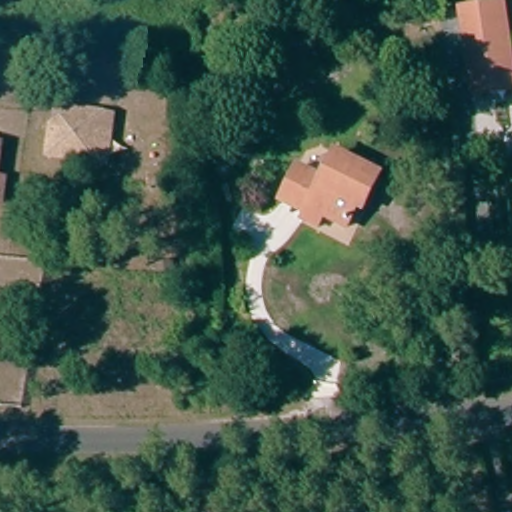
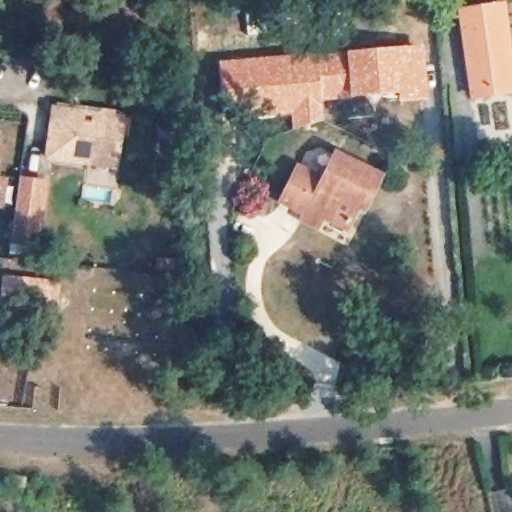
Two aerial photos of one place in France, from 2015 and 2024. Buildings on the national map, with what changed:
demolished [(464,0),(504,0),(509,65),(485,67),(485,77),(470,78),(464,0)]
new [(467,94),(461,8),(500,5),(506,82),(506,92),(482,94),(467,94)]
new [(422,44),(429,99),(397,104),(395,95),(349,99),(343,50),(422,44)]
new [(305,52),(343,50),(349,99),(322,103),(325,120),(291,129),(288,115),(221,125),(216,61),(305,52)]
unchanged [(0,66),(22,66),(17,98),(0,95),(0,66)]
unchanged [(59,159),(47,157),(53,109),(64,110),(112,116),(110,134),(106,164),(96,163),(59,159)]
unchanged [(265,154),(253,179),(233,164),(247,144),(265,154)]
unchanged [(291,169),(320,185),(329,154),(373,175),(357,209),(344,207),(337,232),(278,199),(291,169)]
new [(231,172),(250,182),(239,204),(220,194),(231,172)]
new [(20,177),(49,180),(42,237),(31,235),(29,247),(11,244),(20,177)]
unchanged [(0,182),(3,183),(0,209),(0,182)]
unchanged [(1,499),(2,489),(20,491),(19,501),(1,499)]

